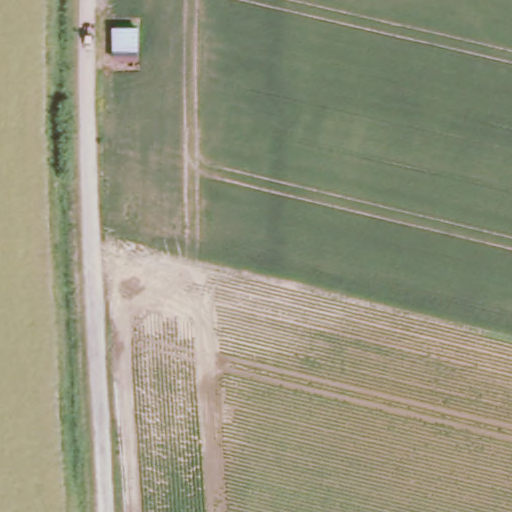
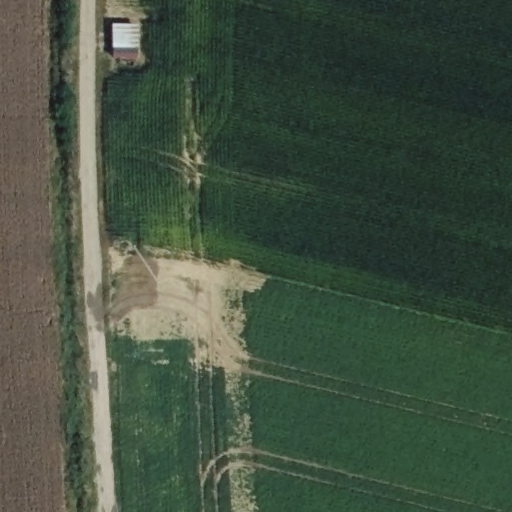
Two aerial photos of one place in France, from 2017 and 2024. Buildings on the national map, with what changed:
unchanged [(115,25),(141,25),(140,60),(115,60),(115,25)]

